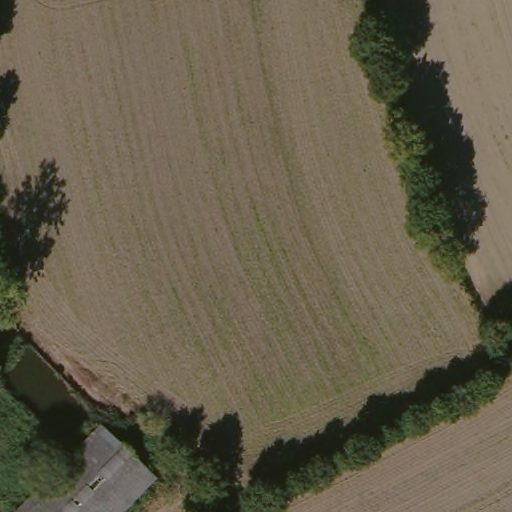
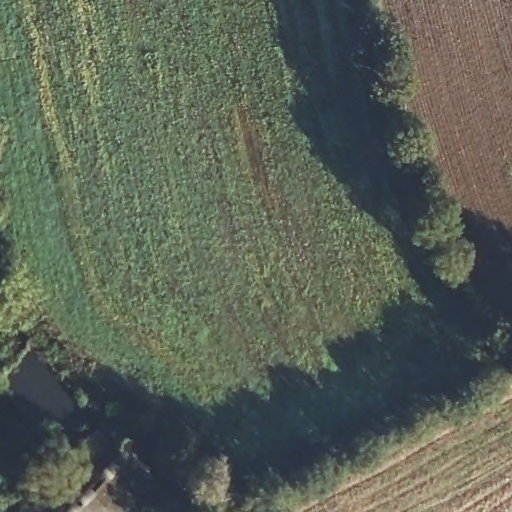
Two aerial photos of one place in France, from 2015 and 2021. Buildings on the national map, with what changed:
unchanged [(155,481),(125,512),(16,512),(100,428),(155,481)]

